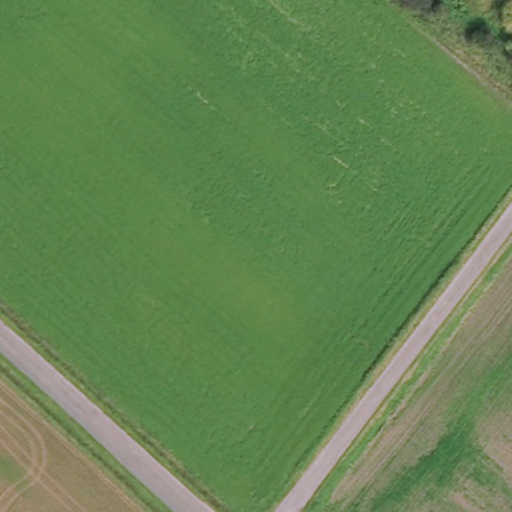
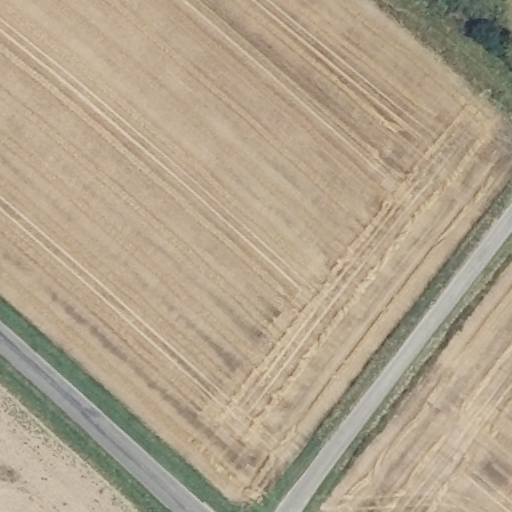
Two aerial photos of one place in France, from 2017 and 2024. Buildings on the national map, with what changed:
[]

